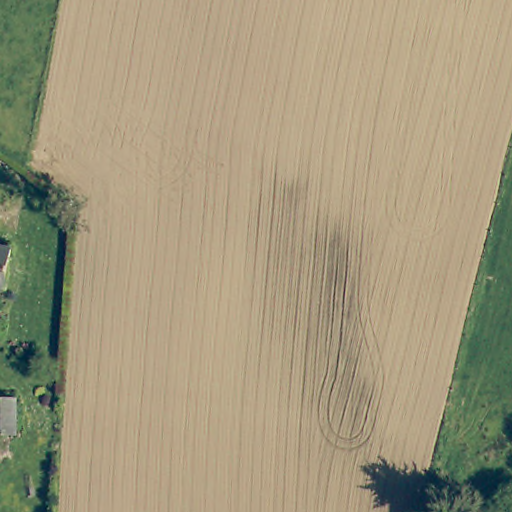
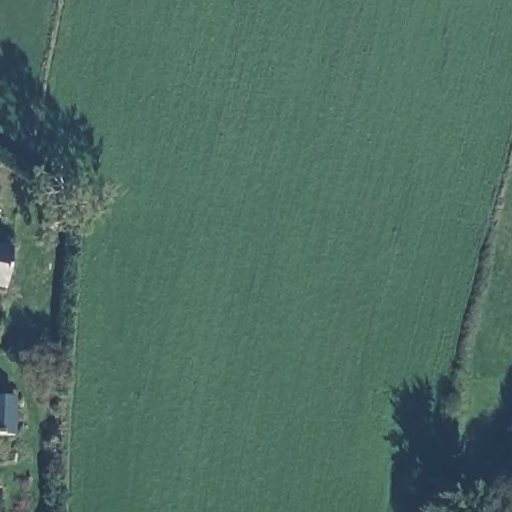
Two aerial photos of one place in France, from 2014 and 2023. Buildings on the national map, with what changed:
unchanged [(10,247),(4,288),(0,288),(0,246),(10,247)]
unchanged [(14,398),(15,434),(0,434),(0,399),(14,398)]

